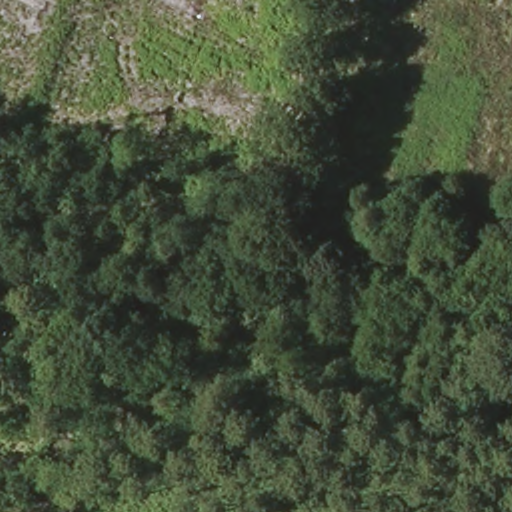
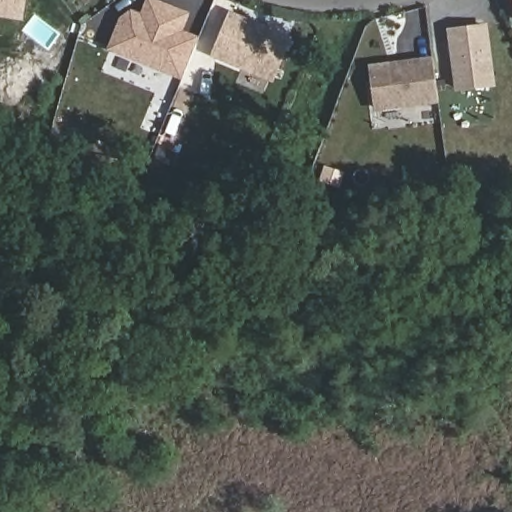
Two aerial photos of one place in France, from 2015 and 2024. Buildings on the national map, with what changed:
new [(22,20),(0,16),(0,0),(26,0),(22,20)]
new [(124,21),(127,19),(141,24),(150,0),(187,15),(180,33),(199,40),(184,78),(112,49),(124,21)]
new [(211,56),(230,10),(292,37),(274,83),(211,56)]
new [(455,91),(447,29),(487,24),(496,86),(455,91)]
new [(376,111),(370,64),(432,57),(439,103),(376,111)]

